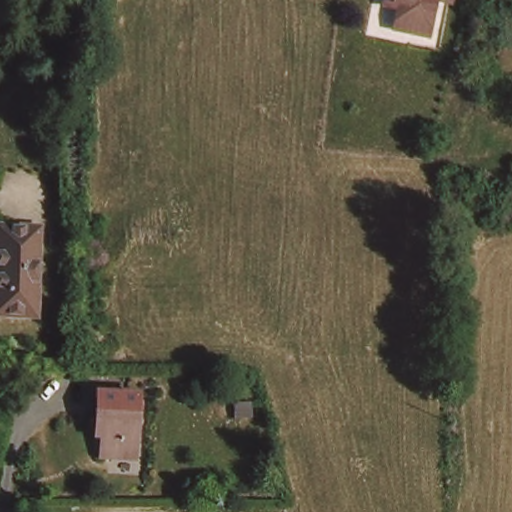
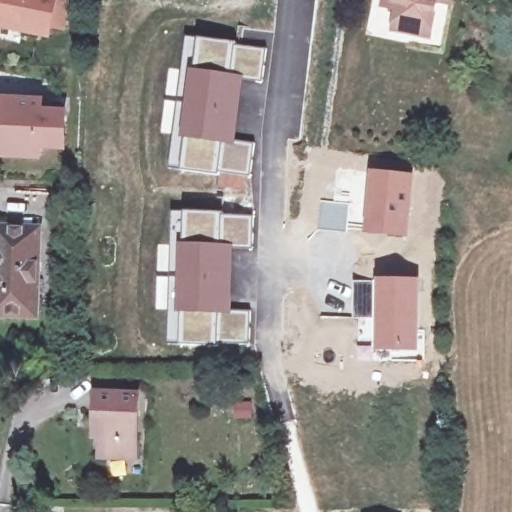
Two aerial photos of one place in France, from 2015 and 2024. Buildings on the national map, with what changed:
new [(71,0),(63,39),(49,36),(0,29),(0,6),(1,0),(71,0)]
unchanged [(451,0),(450,5),(432,1),(425,39),(390,31),(395,9),(390,8),(380,6),(381,0),(451,0)]
new [(169,68),(182,69),(186,36),(267,47),(262,80),(245,77),(237,142),(254,143),(250,179),(233,179),(167,170),(172,133),(161,131),(169,68)]
new [(42,161),(0,159),(0,96),(45,99),(45,109),(67,109),(67,151),(42,150),(42,161)]
new [(369,169),(414,172),(408,237),(364,234),(369,169)]
new [(319,199),(350,201),(348,232),(316,230),(319,199)]
new [(253,215),(252,247),(234,247),(232,247),(232,244),(172,243),(172,210),(253,215)]
unchanged [(35,231),(32,316),(0,316),(0,230),(35,231)]
new [(157,244),(172,243),(232,244),(232,247),(234,247),(233,311),(250,310),(250,345),(167,345),(169,310),(155,310),(157,244)]
new [(370,321),(363,321),(363,320),(352,318),(352,278),(373,277),(420,276),(422,357),(411,357),(411,355),(370,354),(370,351),(358,350),(357,342),(370,342),(370,331),(370,321)]
unchanged [(133,457),(99,456),(99,420),(95,420),(96,396),(134,396),(133,457)]

